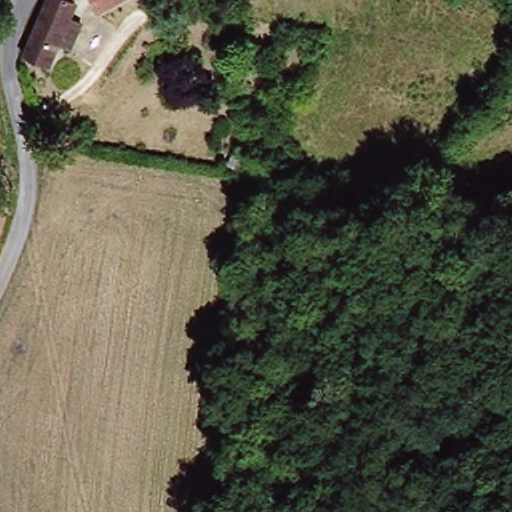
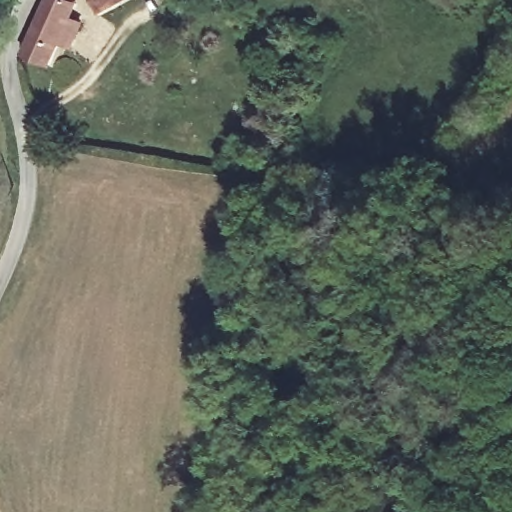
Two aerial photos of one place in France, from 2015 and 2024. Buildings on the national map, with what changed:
unchanged [(72,0),(78,2),(69,19),(83,22),(71,51),(60,47),(49,69),(23,59),(44,0),(72,0)]
unchanged [(90,0),(134,0),(99,16),(90,0)]

